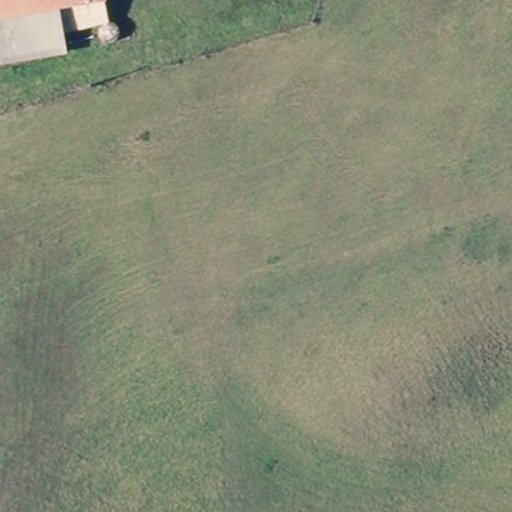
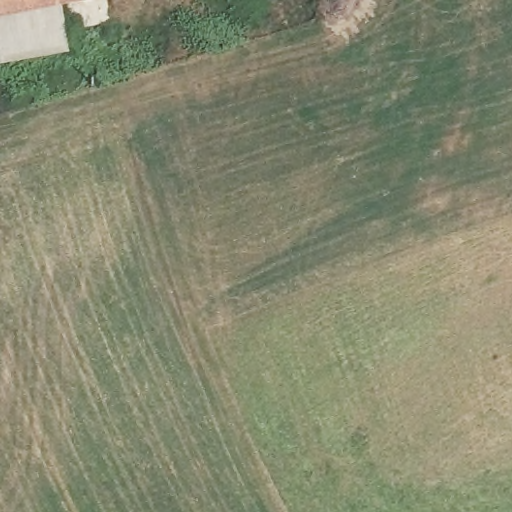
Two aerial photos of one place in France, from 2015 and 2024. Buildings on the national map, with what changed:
unchanged [(64,31),(69,54),(56,55),(0,65),(0,0),(106,0),(109,24),(64,31)]

